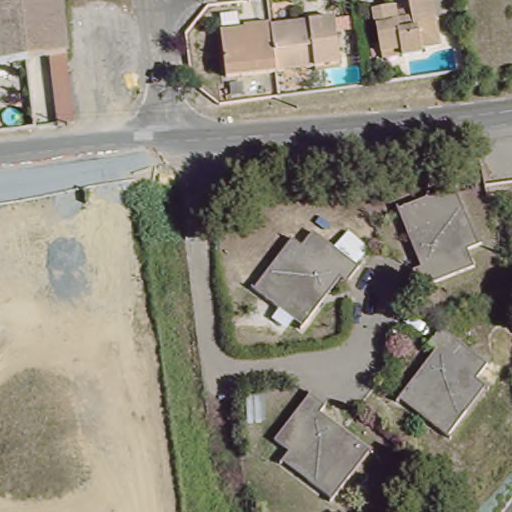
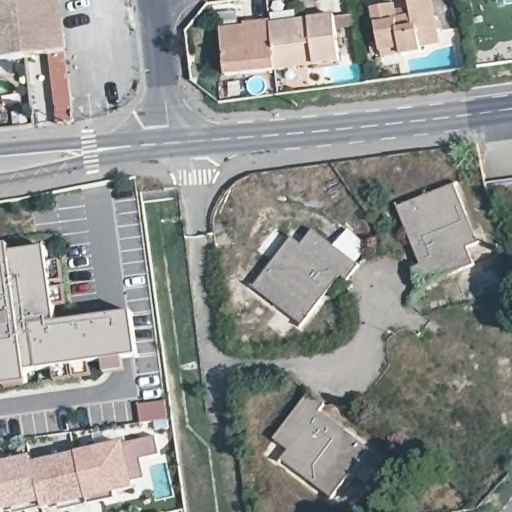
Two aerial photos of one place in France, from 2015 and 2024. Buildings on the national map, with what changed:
unchanged [(66,52),(48,54),(26,57),(0,59),(0,0),(60,0),(66,52)]
unchanged [(385,54),(380,10),(388,9),(399,7),(400,11),(414,9),(413,0),(437,0),(444,44),(426,47),(427,56),(407,59),(387,62),(385,54)]
unchanged [(322,75),(321,69),(280,73),(275,27),(340,19),(346,66),(346,72),(322,75)]
unchanged [(280,73),(230,79),(225,32),(250,30),(250,26),(260,25),(275,24),(275,27),(280,73)]
unchanged [(71,122),(57,123),(48,54),(66,52),(75,121),(71,122)]
unchanged [(471,216),(480,247),(475,248),(468,250),(474,269),(417,286),(411,265),(420,262),(402,204),(410,202),(461,186),(471,216)]
unchanged [(256,286),(276,260),(296,235),(301,239),(305,242),(317,227),(363,264),(351,280),(344,274),(325,299),(311,317),(306,324),(281,305),(256,286)]
new [(10,247),(11,254),(46,249),(56,324),(132,313),(138,358),(0,377),(0,248),(10,247)]
demolished [(438,431),(415,412),(418,407),(393,386),(408,367),(413,371),(432,347),(427,343),(420,337),(433,322),(479,359),(467,375),(472,378),(452,405),(456,408),(438,431)]
unchanged [(285,457),(288,453),(273,440),(310,392),(326,404),(321,411),(346,431),(366,447),(371,451),(353,475),(333,502),(307,482),(282,462),(285,457)]
new [(164,400),(168,428),(155,429),(155,421),(139,423),(136,404),(164,400)]
new [(133,482),(135,490),(115,493),(116,499),(88,506),(77,456),(76,451),(124,441),(125,445),(156,438),(160,454),(140,459),(145,479),(133,482)]
new [(57,505),(42,509),(33,465),(77,456),(88,506),(71,510),(59,512),(57,505)]
new [(0,511),(0,466),(31,459),(33,465),(42,509),(29,512),(13,512),(12,508),(0,511)]

